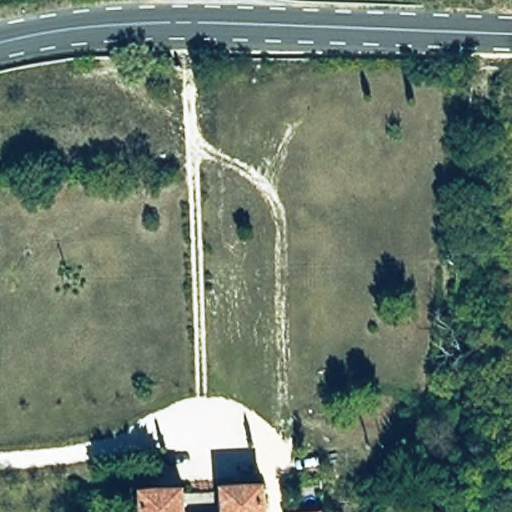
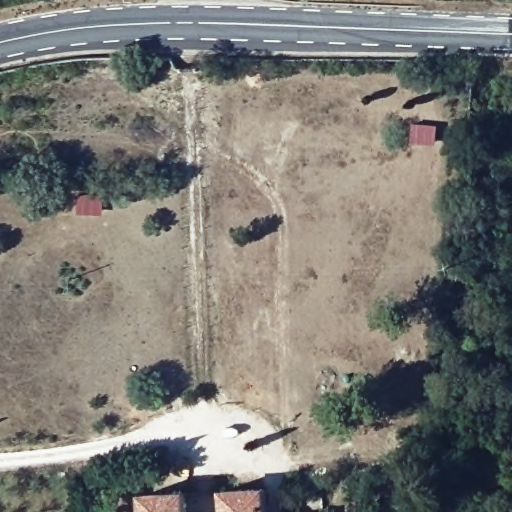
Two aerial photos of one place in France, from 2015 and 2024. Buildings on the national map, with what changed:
unchanged [(269,487),(270,512),(226,512),(225,487),(269,487)]
unchanged [(189,512),(144,512),(144,492),(188,491),(189,512)]

